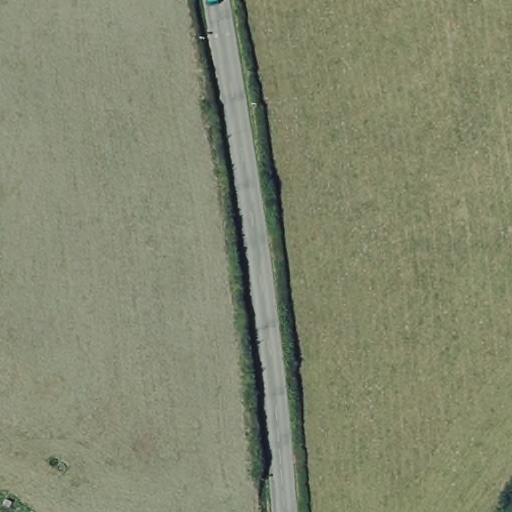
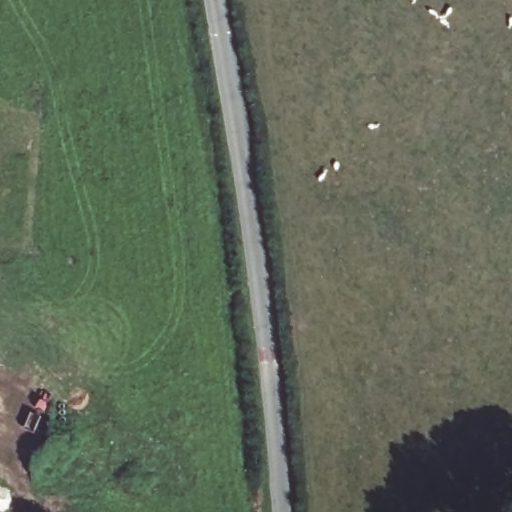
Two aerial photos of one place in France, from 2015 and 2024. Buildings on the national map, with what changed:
[]

